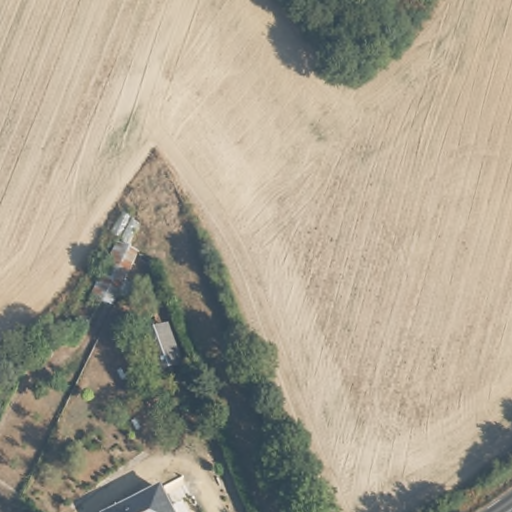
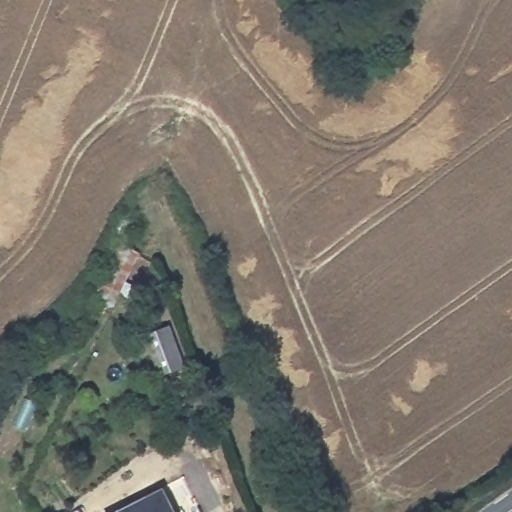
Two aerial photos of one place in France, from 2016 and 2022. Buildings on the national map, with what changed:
unchanged [(125,278),(137,285),(132,297),(120,290),(117,299),(93,283),(117,236),(140,248),(125,278)]
unchanged [(189,361),(171,368),(156,332),(174,324),(189,361)]
unchanged [(157,482),(178,512),(114,512),(157,482)]

